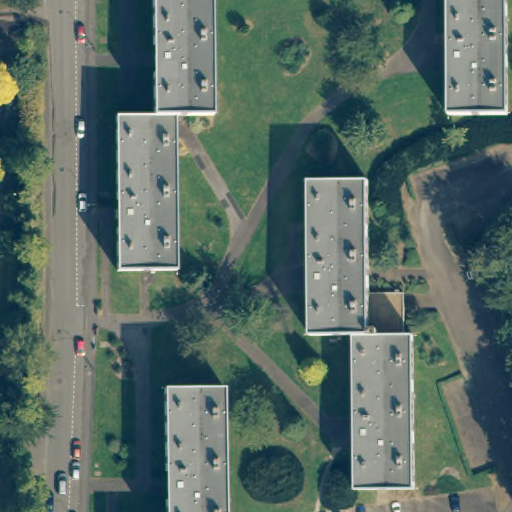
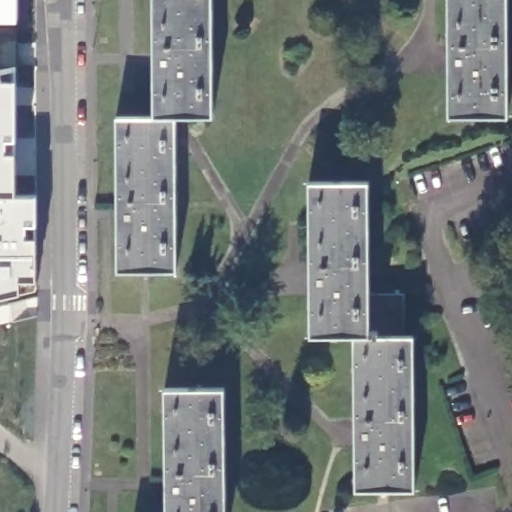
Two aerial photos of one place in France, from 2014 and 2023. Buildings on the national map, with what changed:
unchanged [(118,226),(118,197),(115,198),(115,116),(152,116),(151,74),(154,74),(154,44),(151,44),(151,0),(212,0),(213,114),(175,114),(175,270),(115,270),(115,226),(118,226)]
unchanged [(452,71),(452,42),(449,42),(448,0),(507,0),(510,111),(450,112),(450,71),(452,71)]
new [(19,65),(18,78),(18,138),(18,150),(18,194),(0,194),(0,70),(4,69),(19,65)]
unchanged [(355,447),(357,447),(357,419),(354,419),(353,336),(308,335),(309,293),(311,293),(311,264),(309,264),(309,182),(369,181),(371,291),(406,291),(406,336),(414,336),(418,489),(355,489),(355,447)]
new [(38,194),(38,224),(38,237),(38,280),(38,288),(21,292),(0,297),(0,194),(18,194),(38,194)]
unchanged [(165,497),(167,497),(166,469),(164,469),(163,387),(221,386),(223,512),(165,512),(165,497)]

